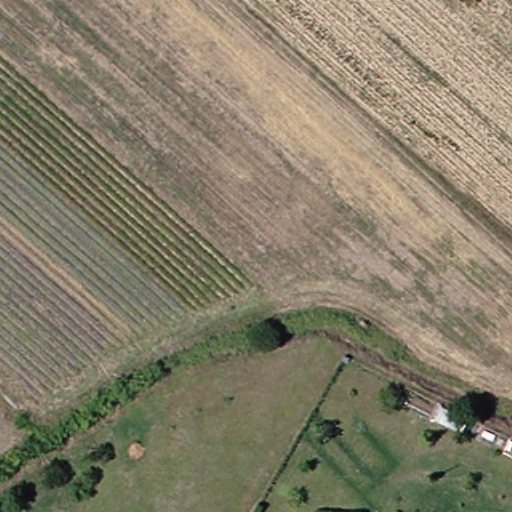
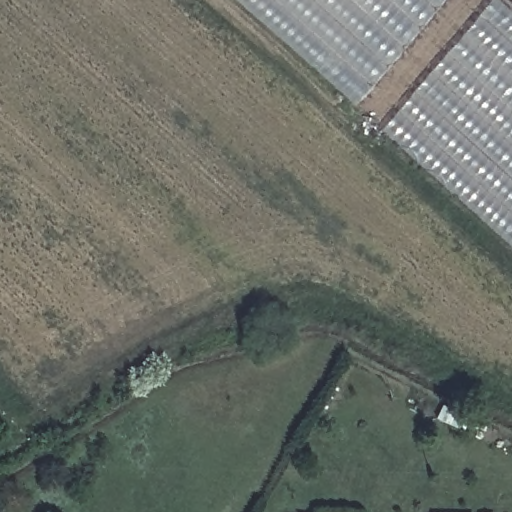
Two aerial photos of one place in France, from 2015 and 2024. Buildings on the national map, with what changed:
new [(232,0),(443,0),(352,107),(232,0)]
new [(491,0),(494,0),(512,16),(512,240),(379,126),(491,0)]

